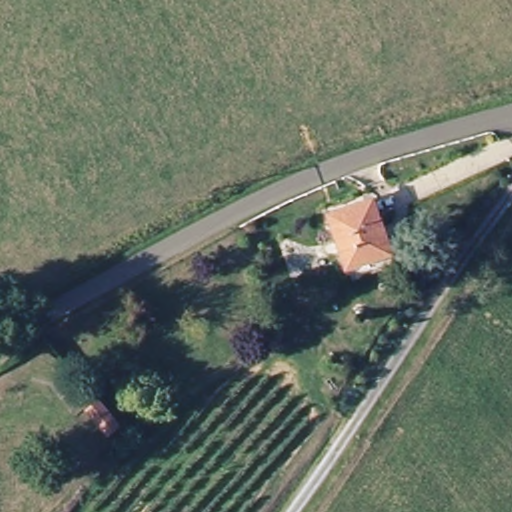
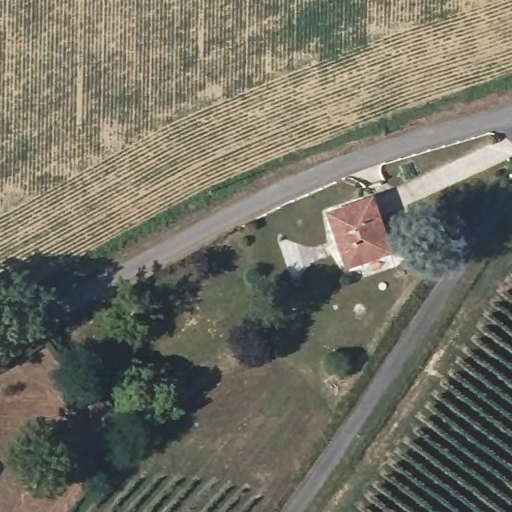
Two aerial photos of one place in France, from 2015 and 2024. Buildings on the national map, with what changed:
unchanged [(373,202),(392,254),(347,271),(328,219),(373,202)]
unchanged [(90,397),(110,417),(100,427),(80,405),(90,397)]

